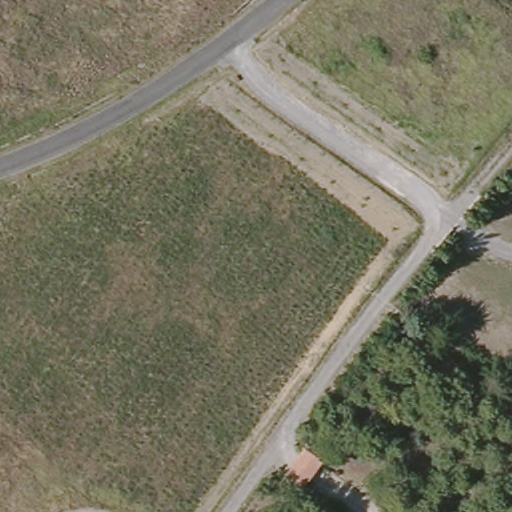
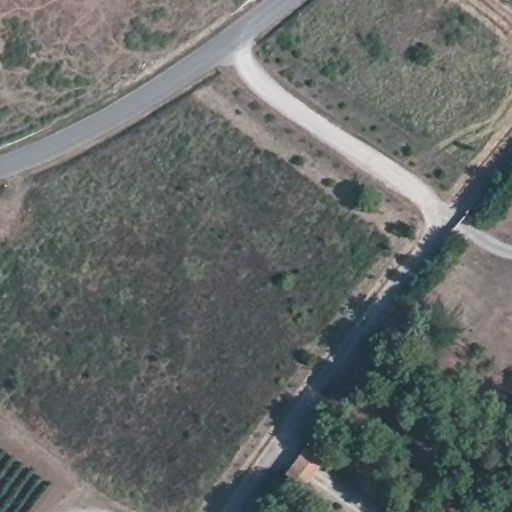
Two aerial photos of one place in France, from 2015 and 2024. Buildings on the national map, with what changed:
unchanged [(302,487),(286,476),(306,450),(321,461),(302,487)]

